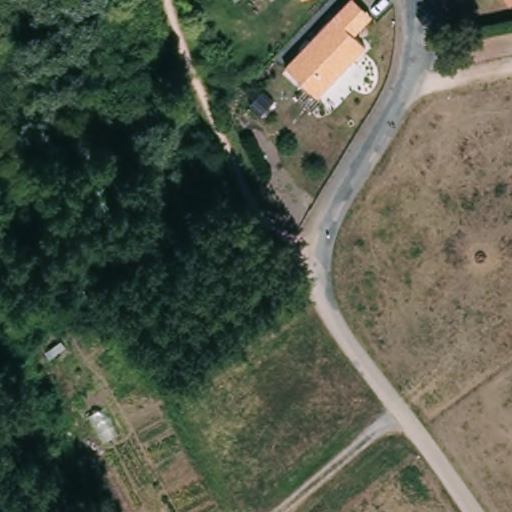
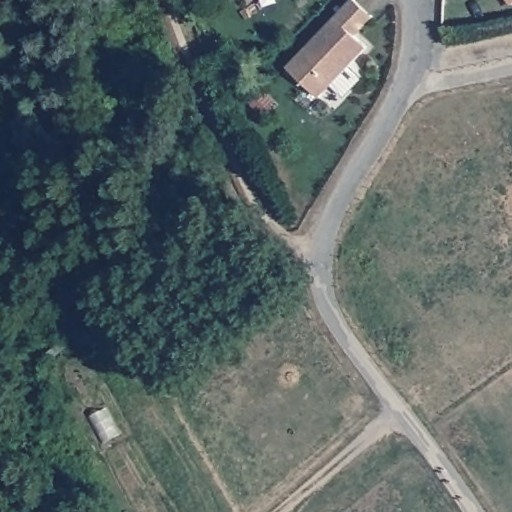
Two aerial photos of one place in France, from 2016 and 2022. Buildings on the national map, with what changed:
unchanged [(355,38),(366,50),(332,85),(316,101),(283,69),(335,18),(353,0),(354,0),(373,19),(355,38)]

